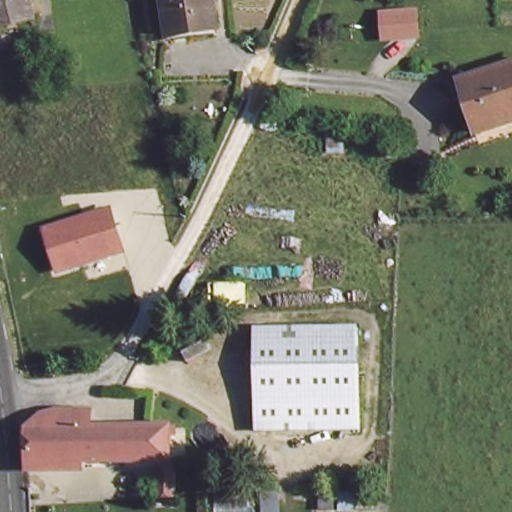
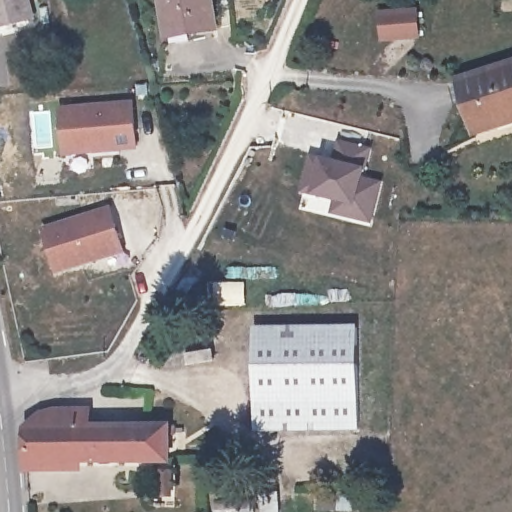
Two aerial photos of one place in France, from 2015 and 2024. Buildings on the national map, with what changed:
unchanged [(0,30),(0,0),(32,0),(37,21),(0,30)]
unchanged [(169,28),(165,0),(214,0),(218,24),(169,28)]
unchanged [(494,126),(478,130),(476,126),(463,80),(512,65),(512,120),(507,121),(494,126)]
new [(57,107),(133,99),(137,149),(64,156),(57,107)]
new [(337,137),(371,146),(367,166),(365,177),(381,181),(371,223),(329,213),(332,201),(296,192),(306,152),(331,157),(337,137)]
unchanged [(125,254),(56,274),(42,228),(110,207),(125,254)]
unchanged [(370,420),(265,434),(253,339),(356,324),(370,420)]
unchanged [(35,424),(58,404),(94,406),(95,420),(156,422),(175,423),(173,456),(89,452),(86,467),(37,466),(36,449),(35,424)]

